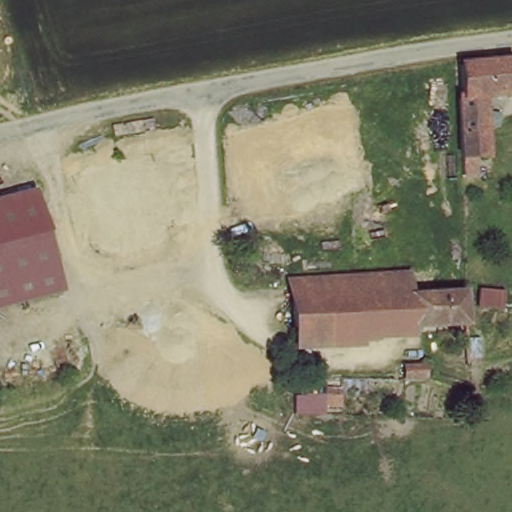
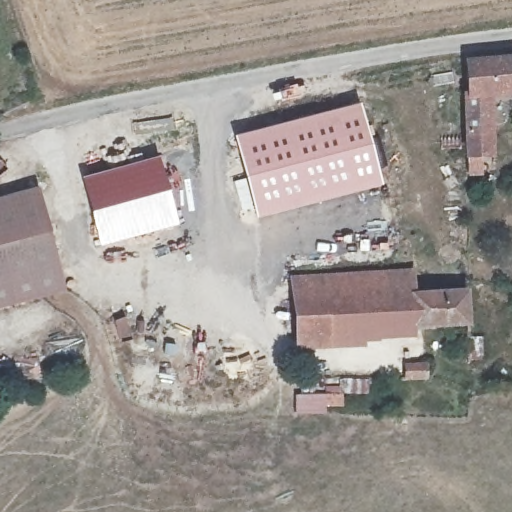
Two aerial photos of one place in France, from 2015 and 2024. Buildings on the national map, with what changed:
unchanged [(466,58),(512,56),(512,104),(487,107),(490,171),(483,172),(485,187),(470,189),(466,58)]
new [(235,134),(360,103),(380,185),(255,217),(235,134)]
new [(177,222),(98,242),(81,175),(158,155),(177,222)]
unchanged [(0,195),(31,186),(60,287),(0,305),(0,195)]
unchanged [(292,279),(318,278),(410,273),(411,295),(293,301),(292,279)]
unchanged [(411,295),(468,291),(469,321),(379,327),(377,344),(296,347),(293,301),(411,295)]
new [(342,406),(325,407),(326,412),(297,415),(295,395),(340,390),(340,380),(368,377),(370,392),(340,395),(342,406)]

